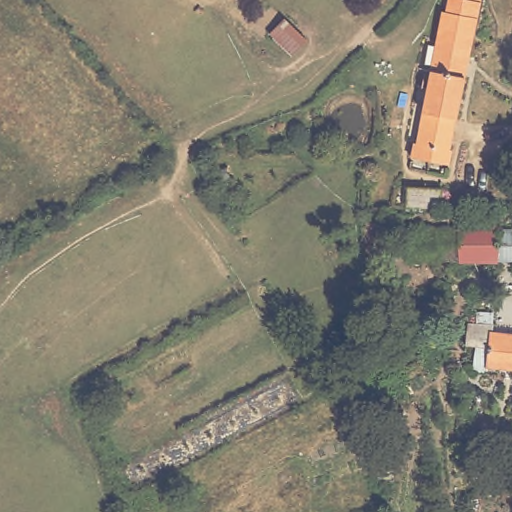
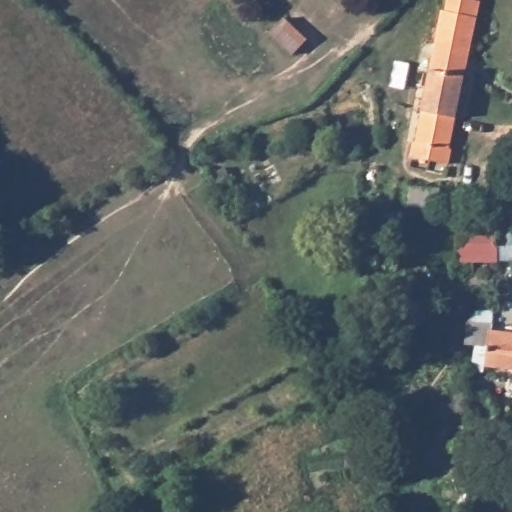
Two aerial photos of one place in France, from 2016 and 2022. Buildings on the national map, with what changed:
unchanged [(432,68),(443,14),(448,14),(451,0),(456,0),(467,2),(467,0),(481,0),(465,75),(447,72),(432,68)]
unchanged [(293,50),(276,27),(291,14),(310,38),(293,50)]
unchanged [(450,147),(456,148),(452,166),(401,155),(405,138),(416,140),(432,68),(447,72),(465,75),(450,147)]
unchanged [(409,192),(389,192),(389,175),(410,175),(409,192)]
unchanged [(512,219),(512,259),(507,259),(506,236),(506,230),(505,226),(505,219),(512,219)]
unchanged [(467,261),(466,250),(465,228),(505,226),(506,230),(506,236),(507,259),(467,261)]
unchanged [(402,265),(402,238),(412,238),(412,230),(465,228),(466,250),(467,261),(402,265)]
unchanged [(486,368),(486,357),(477,357),(476,345),(467,345),(468,317),(478,317),(478,307),(492,308),(492,331),(512,333),(512,370),(486,368)]

